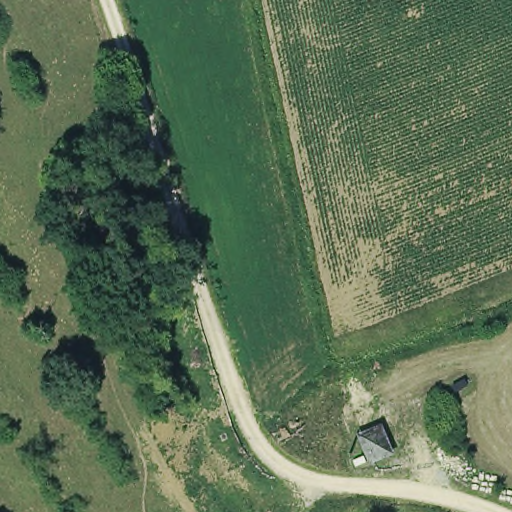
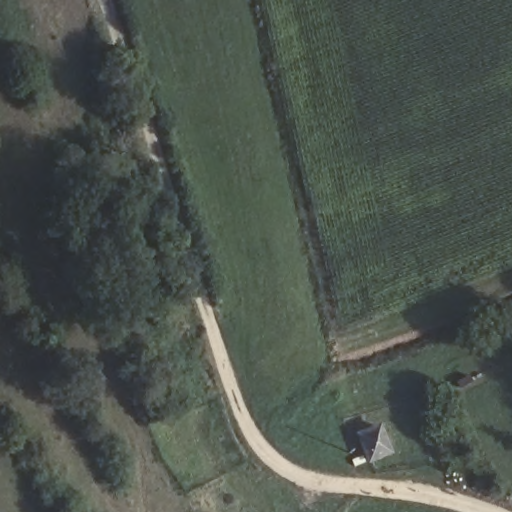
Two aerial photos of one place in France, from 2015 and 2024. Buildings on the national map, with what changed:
unchanged [(379,435),(388,457),(368,466),(359,442),(379,435)]

